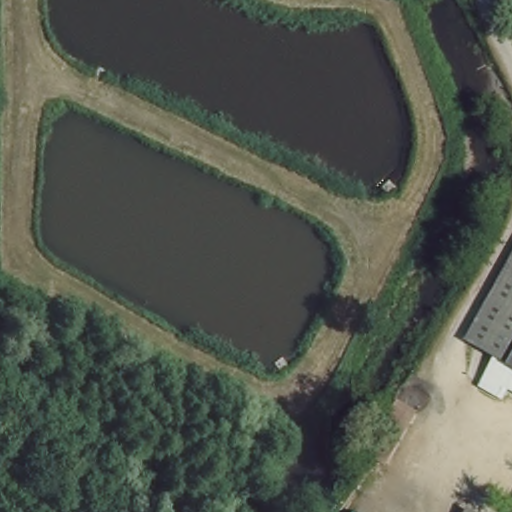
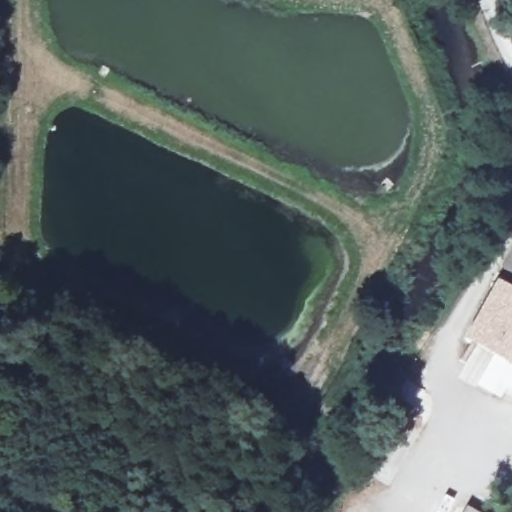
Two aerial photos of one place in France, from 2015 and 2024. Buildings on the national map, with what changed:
unchanged [(509,395),(484,381),(499,355),(471,340),(512,261),(512,390),(509,395)]
unchanged [(466,512),(458,512),(460,508),(466,512)]
unchanged [(511,512),(512,510),(512,512),(511,512)]

